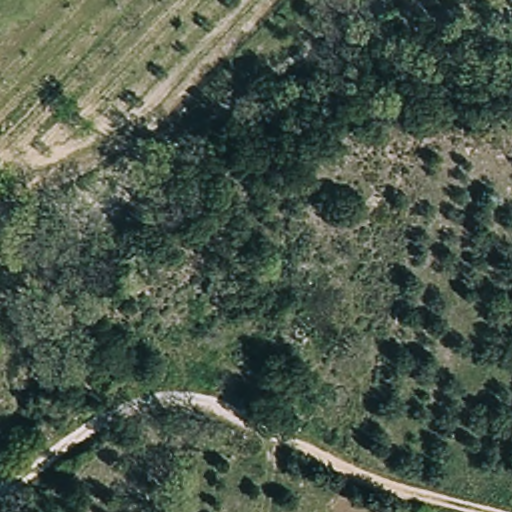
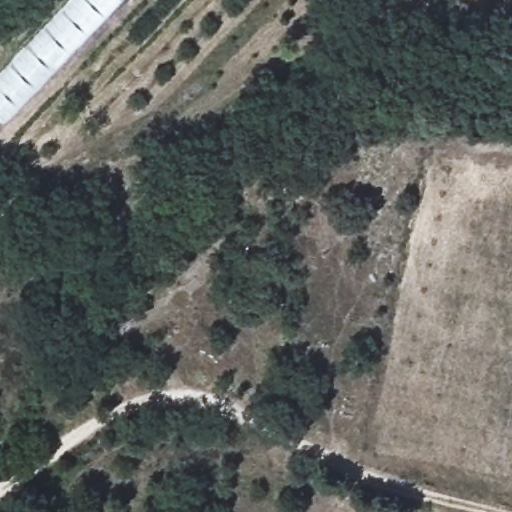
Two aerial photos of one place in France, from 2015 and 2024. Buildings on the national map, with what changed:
new [(0,125),(0,75),(73,0),(122,0),(0,125)]

